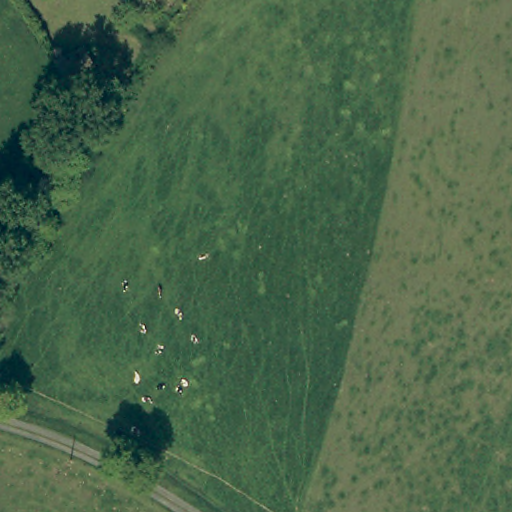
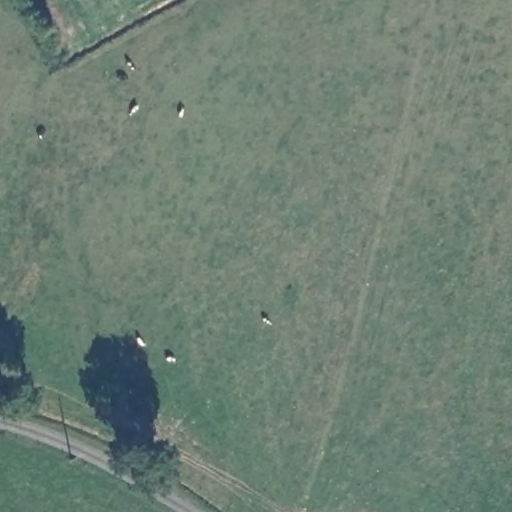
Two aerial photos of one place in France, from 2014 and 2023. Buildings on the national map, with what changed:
unchanged [(105,61),(80,74),(67,48),(92,35),(105,61)]

